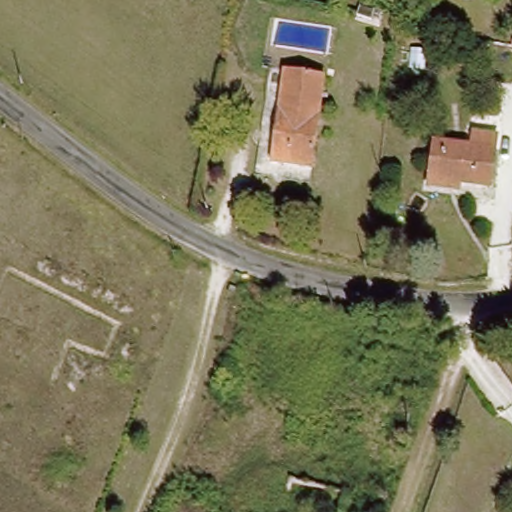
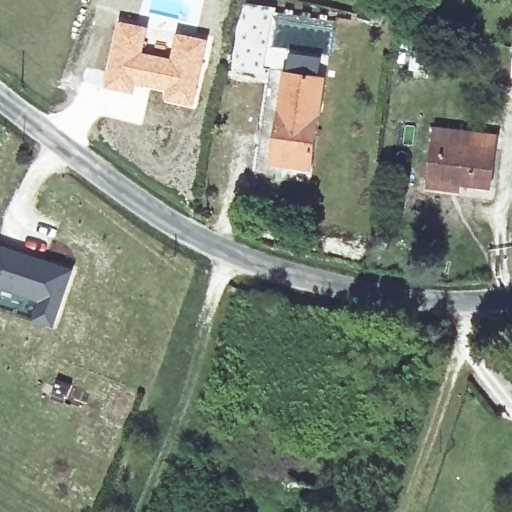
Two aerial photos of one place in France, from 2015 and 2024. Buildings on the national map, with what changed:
new [(120,21),(149,27),(145,51),(170,57),(176,32),(209,39),(193,109),(162,101),(165,92),(138,86),(135,96),(104,88),(120,21)]
unchanged [(322,83),(302,168),(265,158),(286,74),(322,83)]
unchanged [(428,186),(431,174),(433,139),(464,142),(467,124),(495,131),(483,184),(464,181),(461,192),(428,186)]
new [(40,300),(1,287),(0,290),(0,243),(74,269),(55,327),(34,320),(40,300)]

